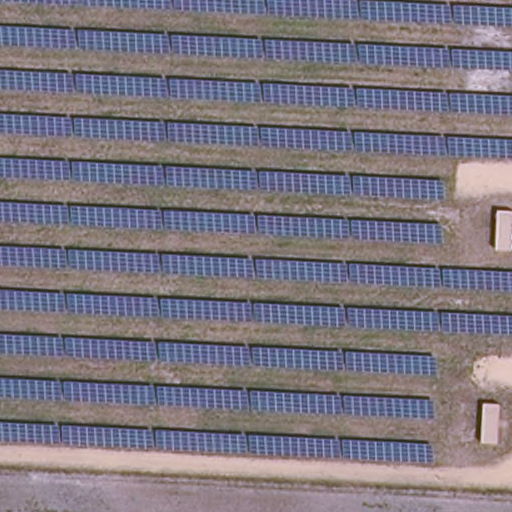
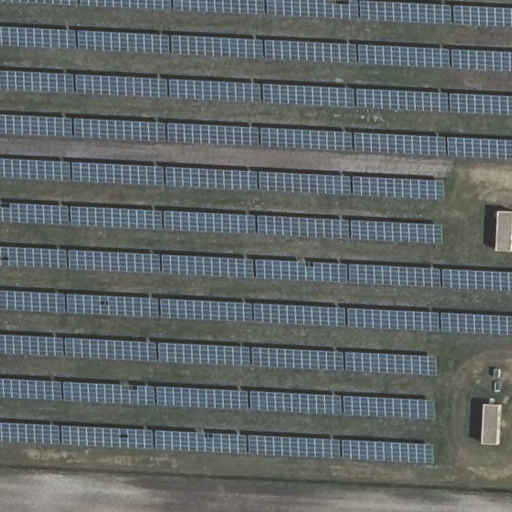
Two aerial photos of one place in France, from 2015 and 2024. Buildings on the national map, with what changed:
unchanged [(498,250),(499,211),(512,211),(512,251),(498,250)]
unchanged [(499,445),(483,444),(485,403),(502,404),(499,445)]

